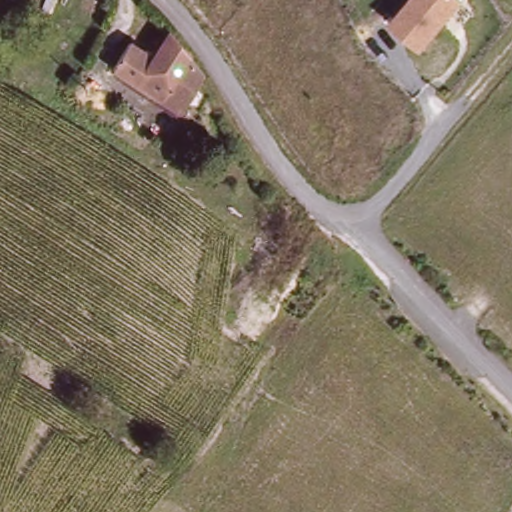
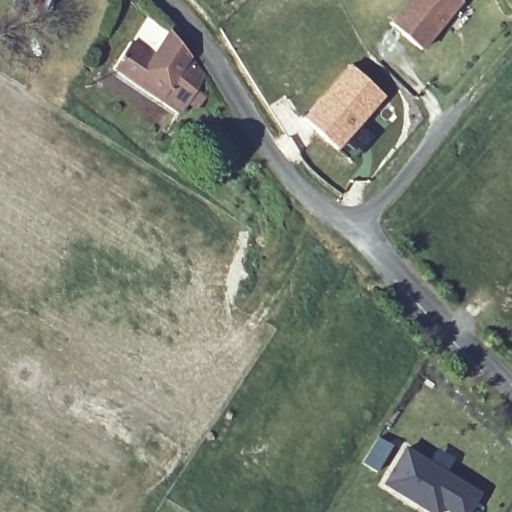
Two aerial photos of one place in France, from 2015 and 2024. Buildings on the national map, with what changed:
unchanged [(389,20),(405,0),(458,0),(421,45),(389,20)]
unchanged [(113,77),(129,52),(155,71),(174,42),(198,70),(210,84),(201,100),(198,105),(184,127),(166,112),(113,77)]
new [(352,63),(387,92),(339,147),(305,117),(352,63)]
new [(410,447),(482,495),(471,512),(454,512),(446,507),(442,512),(433,512),(388,482),(410,447)]

